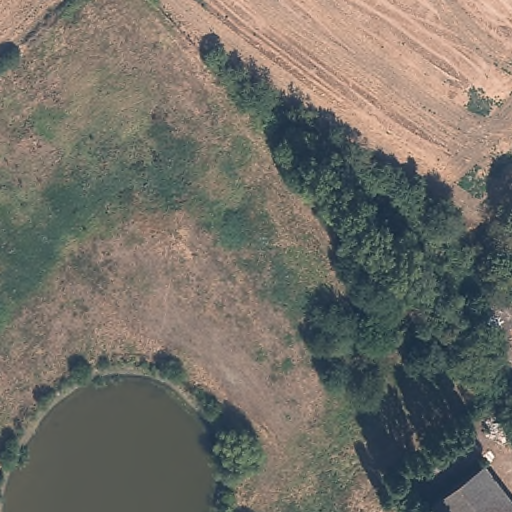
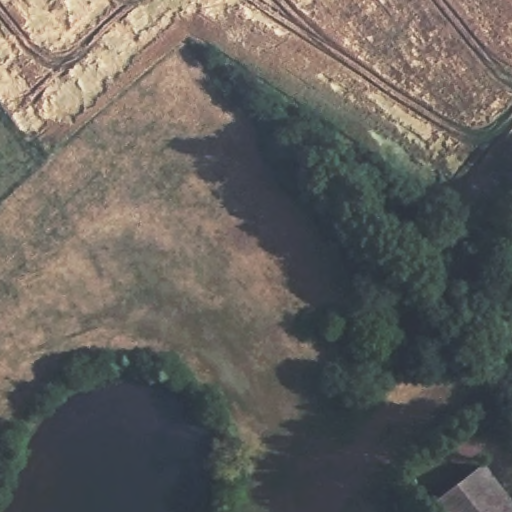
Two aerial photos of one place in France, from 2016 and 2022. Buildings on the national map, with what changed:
unchanged [(512,397),(504,389),(512,382),(512,397)]
unchanged [(512,504),(512,512),(434,512),(428,505),(482,463),(512,504)]

